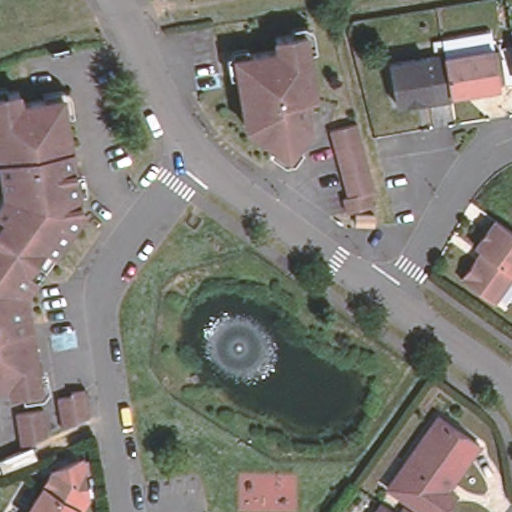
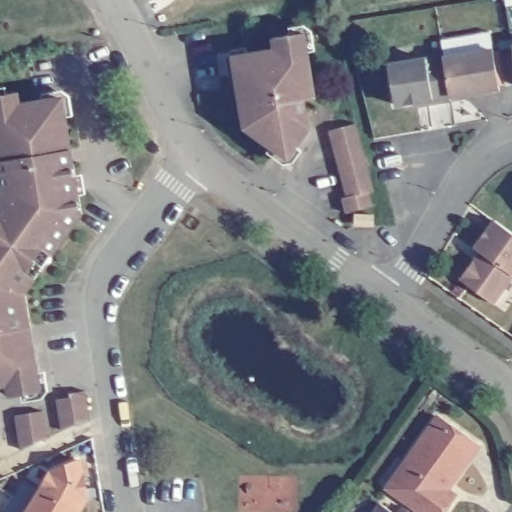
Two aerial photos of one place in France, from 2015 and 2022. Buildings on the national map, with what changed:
unchanged [(241,120),(231,49),(276,43),(274,30),(304,26),(313,92),(301,94),(305,124),(281,153),(241,120)]
unchanged [(510,48),(512,47),(512,59),(510,48)]
unchanged [(464,93),(448,96),(441,60),(491,51),(492,54),(498,53),(504,85),(497,86),(499,92),(485,95),(466,98),(464,93)]
unchanged [(415,103),(394,107),(388,68),(441,57),(441,60),(448,96),(449,101),(434,104),(416,108),(415,103)]
unchanged [(0,188),(0,97),(16,94),(18,107),(60,100),(80,217),(42,270),(0,240),(0,199),(1,197),(0,188)]
unchanged [(341,206),(346,205),(343,190),(339,176),(336,163),(334,150),(330,136),(358,129),(361,142),(364,156),(367,170),(370,183),(374,198),(368,199),(371,212),(345,219),(341,206)]
unchanged [(372,223),(371,233),(353,231),(354,221),(372,223)]
unchanged [(512,234),(512,280),(493,306),(461,282),(481,254),(476,250),(497,223),(512,234)]
unchanged [(23,297),(38,395),(8,400),(5,387),(0,388),(0,240),(42,270),(23,297)]
unchanged [(64,430),(59,399),(73,397),(73,393),(88,390),(92,418),(78,424),(64,430)]
unchanged [(18,415),(44,410),(47,424),(49,436),(23,448),(20,428),(18,415)]
unchanged [(443,512),(416,512),(384,490),(396,473),(402,464),(433,419),(471,445),(474,448),(472,451),(445,492),(453,497),(443,512)]
unchanged [(49,472),(76,460),(84,498),(76,510),(39,488),(49,472)]
unchanged [(76,510),(75,512),(24,512),(39,488),(76,510)]
unchanged [(381,512),(375,512),(377,509),(381,512)]

